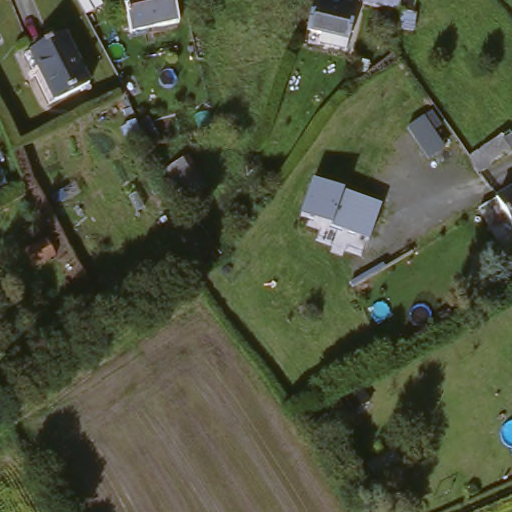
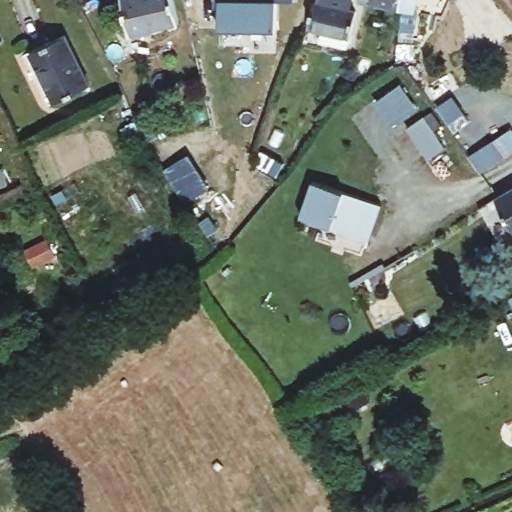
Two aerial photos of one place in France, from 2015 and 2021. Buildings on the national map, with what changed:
unchanged [(125,34),(115,0),(167,0),(174,19),(125,34)]
new [(217,0),(292,0),(292,6),(275,6),(273,35),(216,32),(217,1),(217,0)]
unchanged [(349,14),(356,16),(351,43),(338,40),(335,50),(319,45),(321,36),(309,34),(317,0),(350,0),(352,1),(349,14)]
unchanged [(412,17),(419,18),(416,35),(399,33),(400,17),(357,5),(358,0),(416,0),(412,17)]
unchanged [(23,52),(52,35),(79,85),(49,100),(23,52)]
unchanged [(450,150),(433,162),(412,130),(429,119),(450,150)]
unchanged [(512,139),(512,157),(478,179),(468,161),(509,136),(512,139)]
unchanged [(183,162),(203,196),(186,208),(162,177),(183,162)]
unchanged [(367,241),(299,218),(311,180),(379,204),(367,241)]
unchanged [(479,216),(483,214),(494,207),(512,195),(512,241),(499,249),(479,216)]
unchanged [(51,263),(29,277),(22,263),(44,249),(51,263)]
unchanged [(304,417),(284,382),(298,375),(318,409),(304,417)]
unchanged [(304,422),(325,409),(338,433),(319,444),(304,422)]

